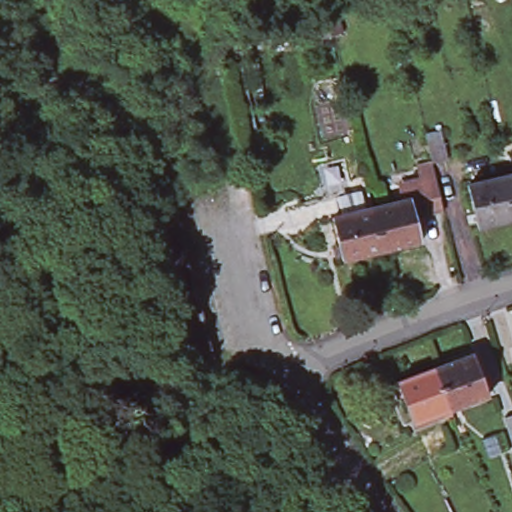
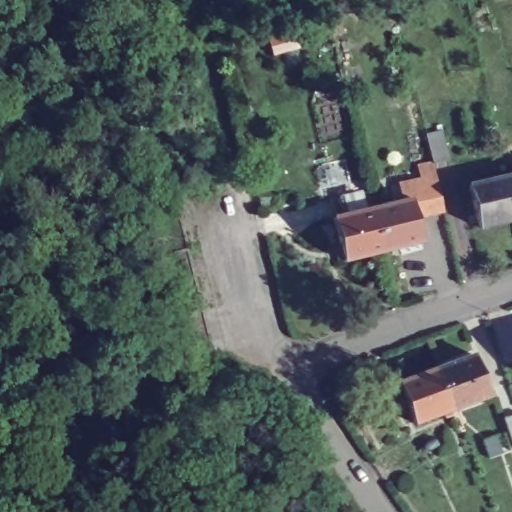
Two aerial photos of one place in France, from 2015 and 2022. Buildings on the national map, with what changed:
unchanged [(326,18),(337,15),(342,33),(332,36),(320,39),(315,21),(326,18)]
unchanged [(448,159),(432,164),(426,134),(442,131),(448,159)]
unchanged [(417,167),(432,164),(443,210),(427,214),(417,167)]
unchanged [(512,175),(512,198),(507,177),(512,175)]
unchanged [(467,185),(507,177),(512,198),(512,220),(477,228),(467,185)]
unchanged [(327,218),(337,215),(332,199),(363,191),(367,209),(407,199),(417,242),(377,250),(338,260),(327,218)]
unchanged [(214,358),(184,364),(146,208),(175,200),(214,358)]
unchanged [(489,395),(451,409),(435,369),(474,354),(489,395)]
unchanged [(412,424),(397,383),(435,369),(451,409),(412,424)]
unchanged [(504,418),(512,415),(512,443),(504,418)]

